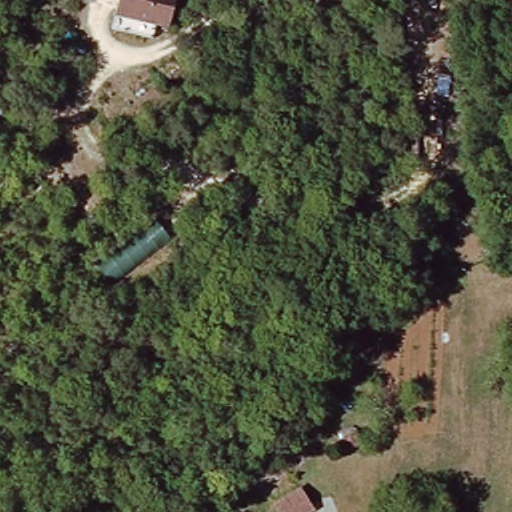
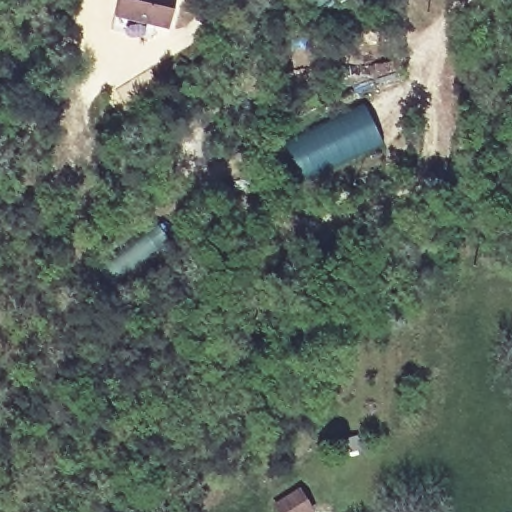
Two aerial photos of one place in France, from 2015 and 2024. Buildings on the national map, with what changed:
unchanged [(109,20),(114,5),(116,0),(179,0),(170,25),(156,20),(151,35),(109,20)]
new [(302,181),(292,161),(297,155),(294,147),(287,150),(284,142),(320,126),(322,131),(331,125),(365,109),(381,144),(344,162),(329,164),(302,181)]

